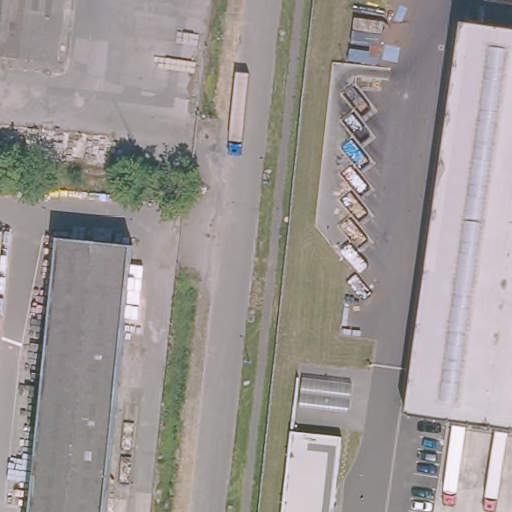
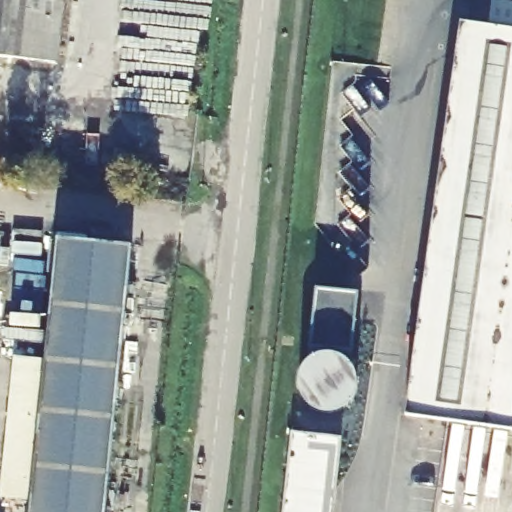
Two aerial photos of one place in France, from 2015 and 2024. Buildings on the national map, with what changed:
unchanged [(0,59),(0,0),(65,0),(59,66),(0,59)]
unchanged [(402,412),(461,24),(512,29),(512,426),(402,412)]
unchanged [(103,512),(25,512),(54,236),(131,244),(103,512)]
new [(317,287),(359,292),(351,353),(311,347),(317,287)]
unchanged [(280,512),(290,431),(341,437),(332,512),(280,512)]

